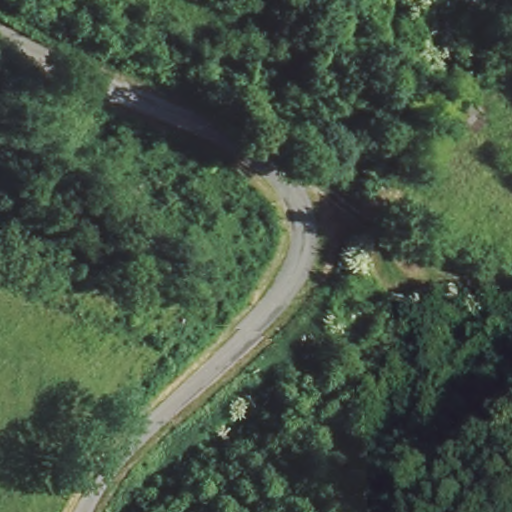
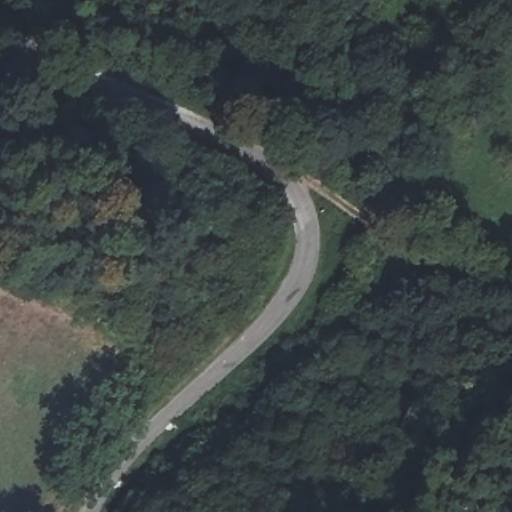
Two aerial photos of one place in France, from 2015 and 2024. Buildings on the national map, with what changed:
unchanged [(462,120),(475,103),(492,117),(480,135),(462,120)]

